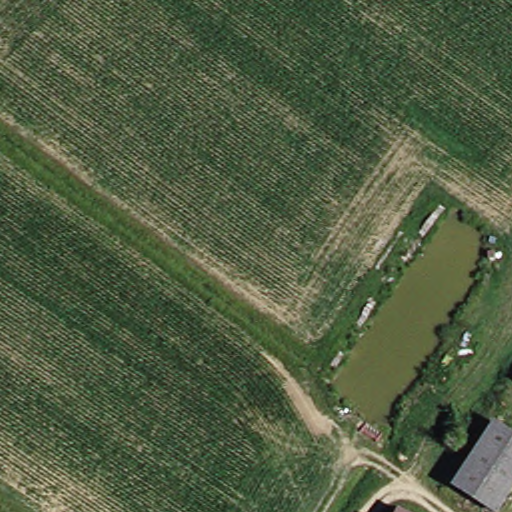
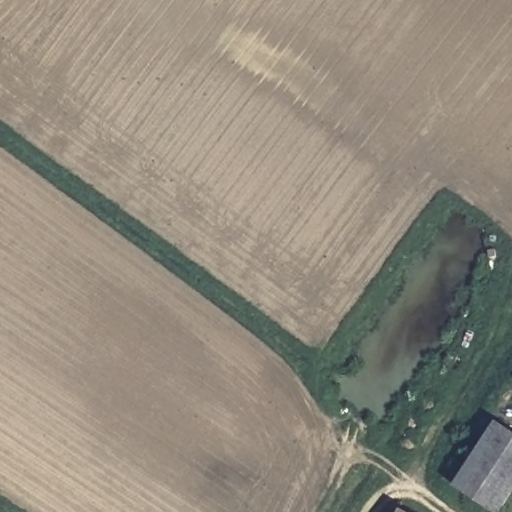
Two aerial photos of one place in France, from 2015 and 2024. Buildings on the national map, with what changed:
unchanged [(463,482),(469,473),(508,419),(512,422),(512,500),(508,506),(504,512),(463,482)]
unchanged [(416,512),(413,512),(413,510),(416,512)]

